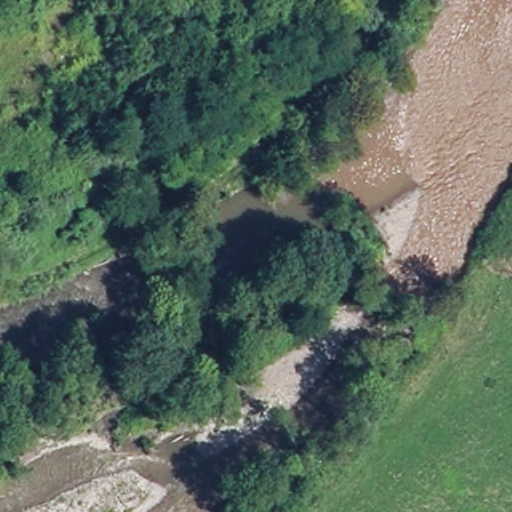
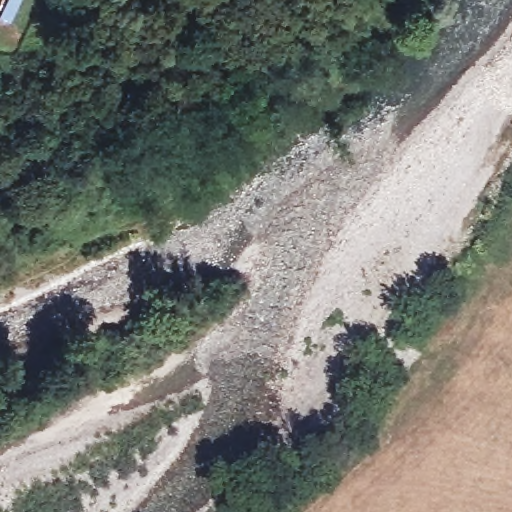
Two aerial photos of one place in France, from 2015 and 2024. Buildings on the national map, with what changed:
[]

